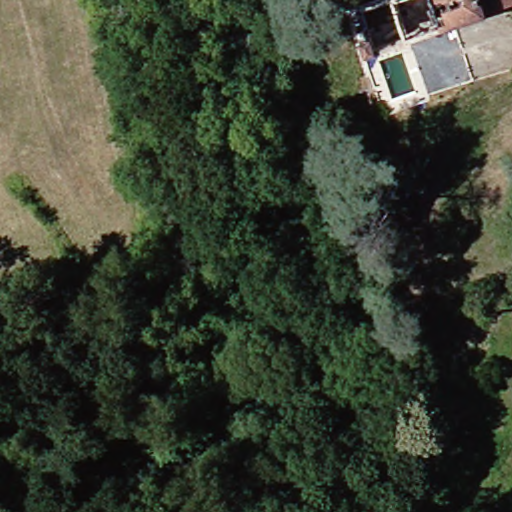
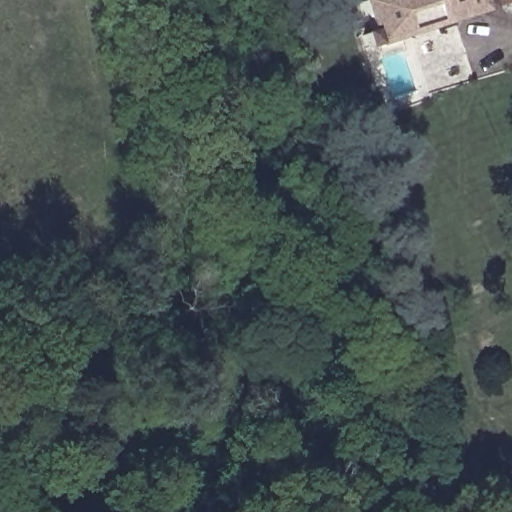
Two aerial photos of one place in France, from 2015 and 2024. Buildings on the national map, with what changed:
unchanged [(455,31),(391,55),(386,41),(356,51),(349,34),(357,31),(347,3),(353,1),(356,0),(481,0),(483,8),(452,19),(455,31)]
unchanged [(489,0),(502,0),(490,4),(489,0)]

